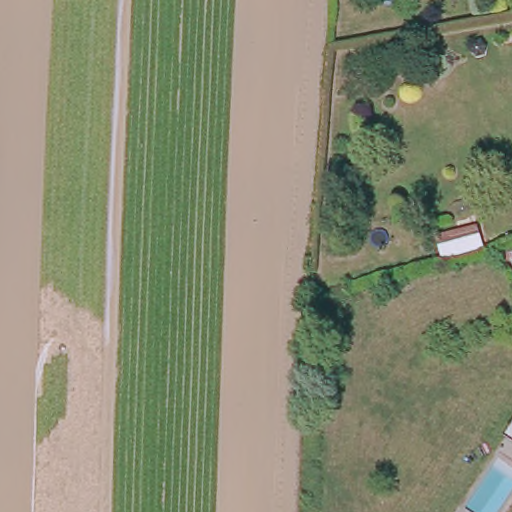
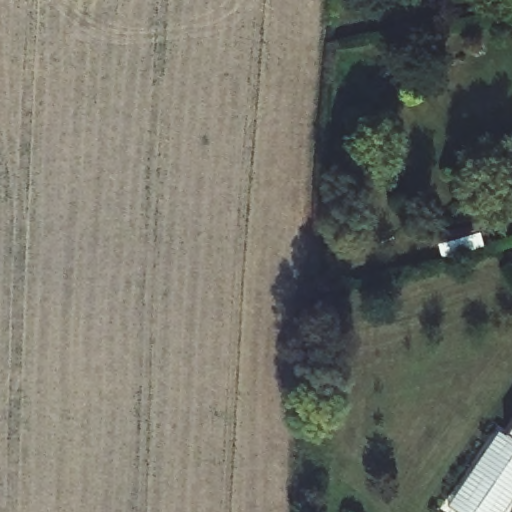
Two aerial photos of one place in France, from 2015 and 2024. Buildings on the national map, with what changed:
unchanged [(446,235),(455,232),(475,227),(479,241),(459,246),(450,249),(446,235)]
new [(455,512),(448,507),(498,432),(507,438),(512,442),(512,501),(505,512),(455,512)]
unchanged [(507,438),(512,432),(512,442),(507,438)]

